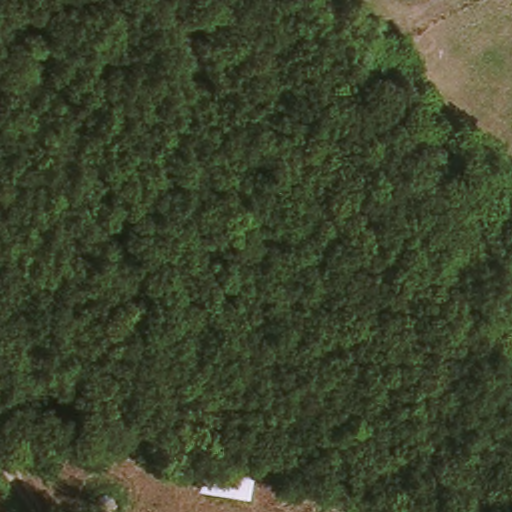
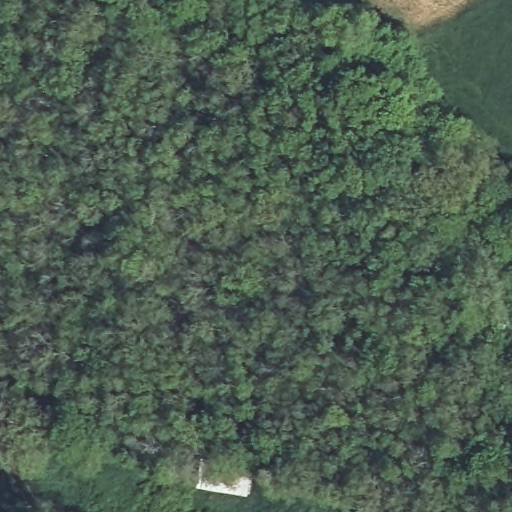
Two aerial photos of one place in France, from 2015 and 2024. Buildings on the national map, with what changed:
unchanged [(198,486),(199,459),(250,465),(247,492),(198,486)]

